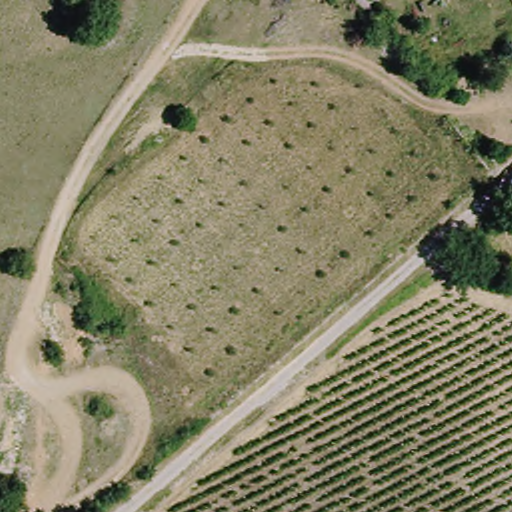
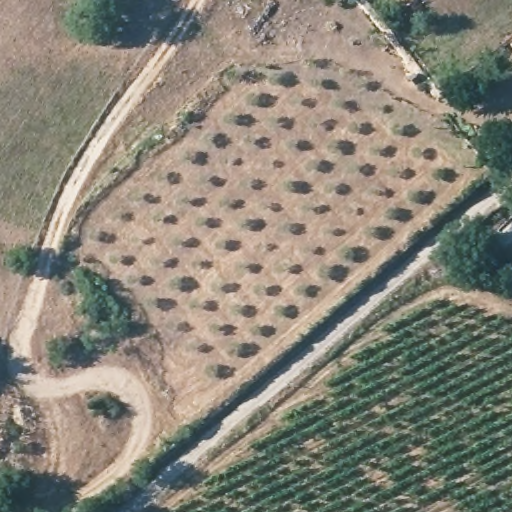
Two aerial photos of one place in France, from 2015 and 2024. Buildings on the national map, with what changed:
[]

